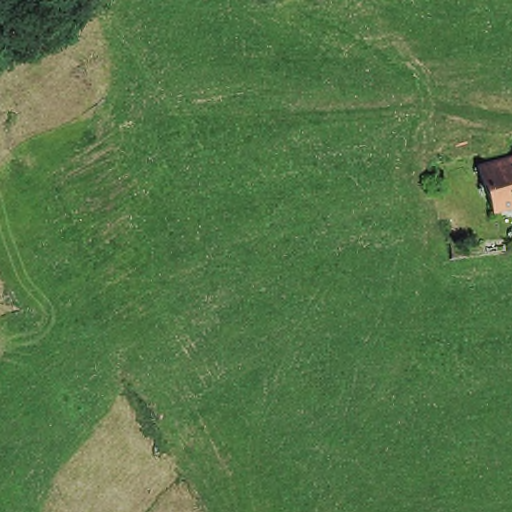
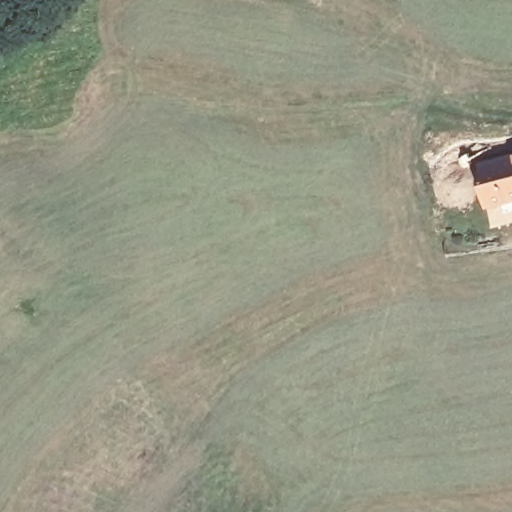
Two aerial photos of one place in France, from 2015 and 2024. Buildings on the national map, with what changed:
unchanged [(485,204),(476,161),(512,152),(512,196),(485,204)]

